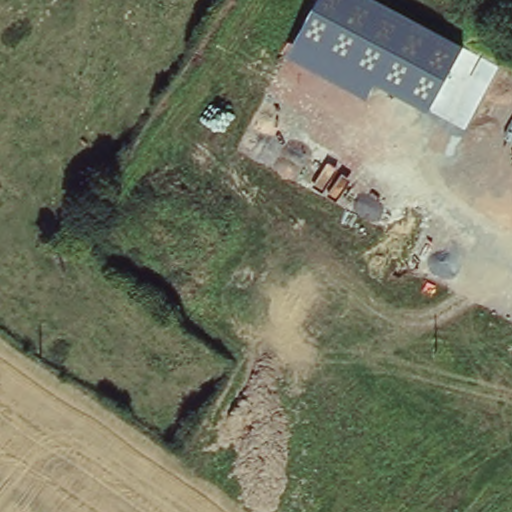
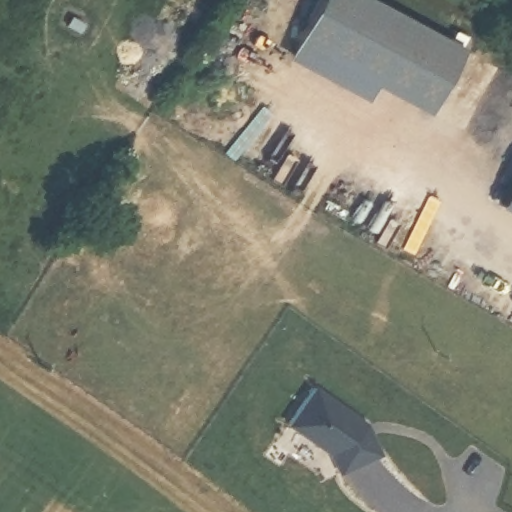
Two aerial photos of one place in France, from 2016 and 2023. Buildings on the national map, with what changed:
unchanged [(427,112),(374,84),(365,100),(287,57),(318,0),(379,0),(464,46),(427,112)]
unchanged [(512,165),(512,219),(487,207),(512,165)]
new [(310,385),(363,422),(375,452),(334,470),(325,450),(285,422),(310,385)]

